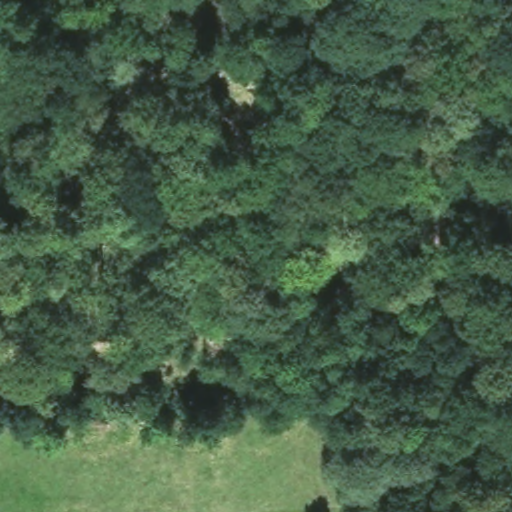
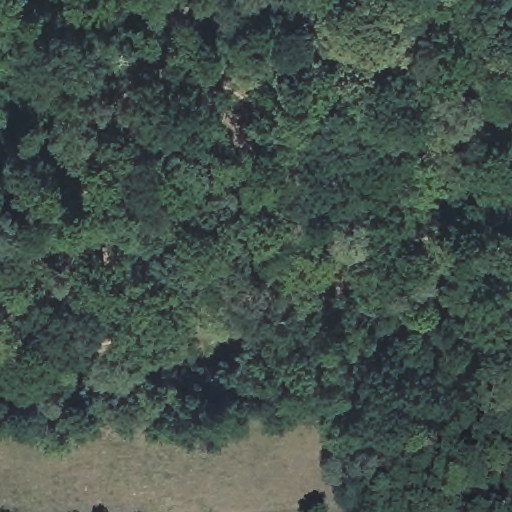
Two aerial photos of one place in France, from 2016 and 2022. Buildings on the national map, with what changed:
unchanged [(166,338),(171,352),(146,357),(142,346),(166,338)]

